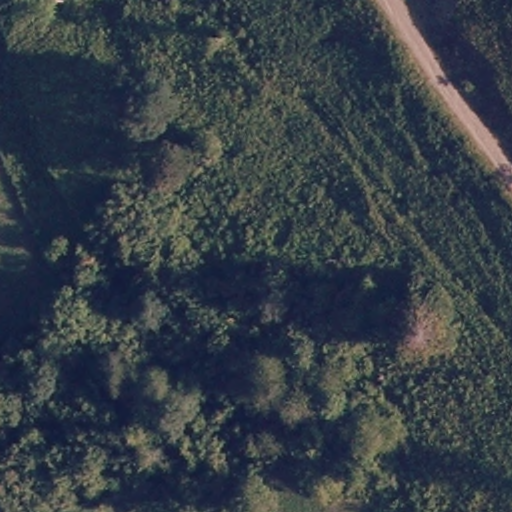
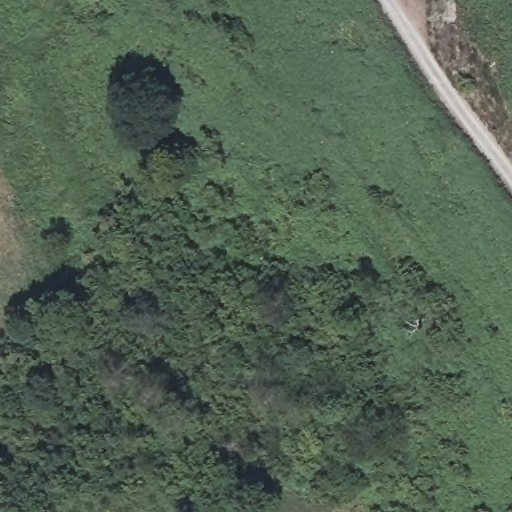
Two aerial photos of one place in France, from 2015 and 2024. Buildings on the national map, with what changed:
[]

